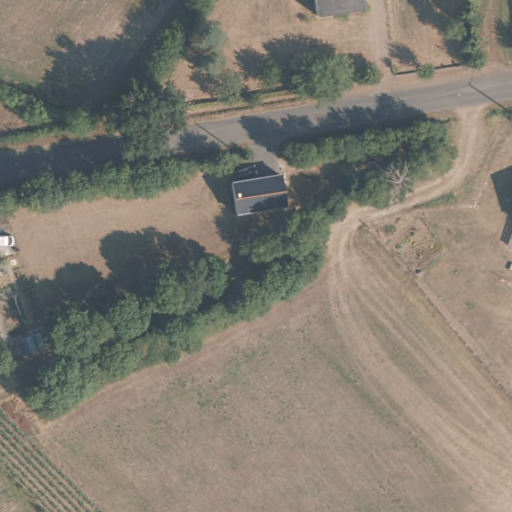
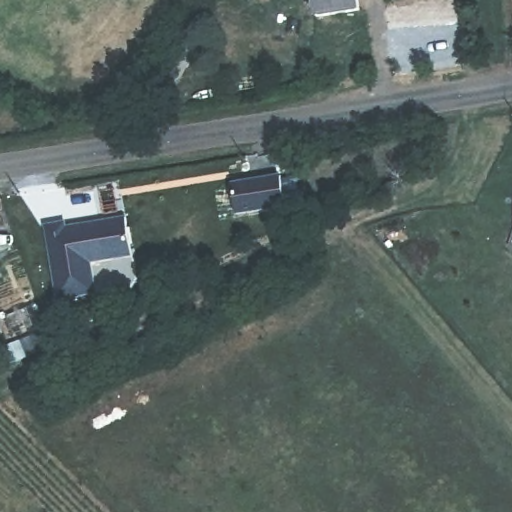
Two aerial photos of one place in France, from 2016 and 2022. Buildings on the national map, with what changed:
unchanged [(316,20),(315,0),(358,0),(359,15),(316,20)]
new [(280,174),(281,179),(294,178),(297,201),(285,202),(285,207),(237,215),(231,181),(280,174)]
new [(65,219),(66,224),(125,216),(131,256),(93,262),(97,293),(56,300),(43,223),(65,219)]

